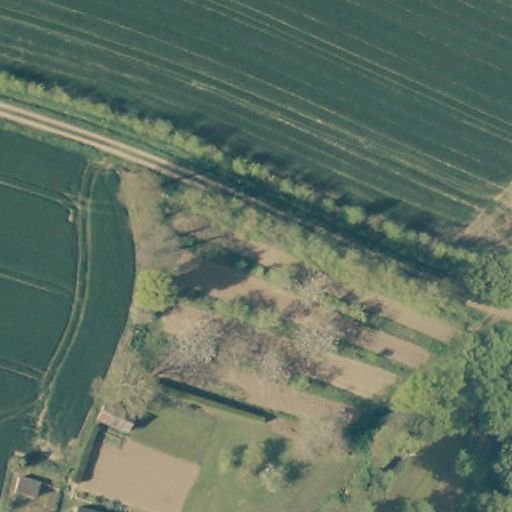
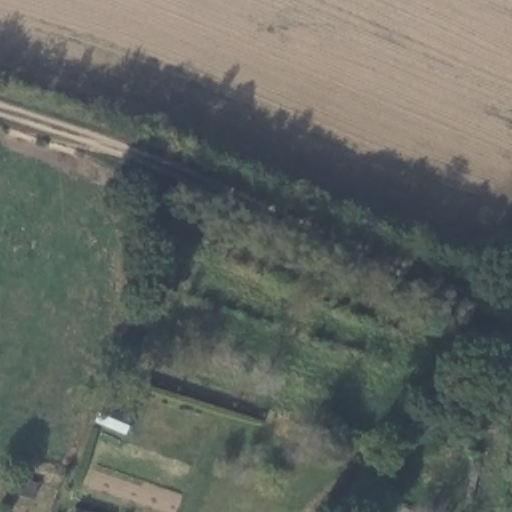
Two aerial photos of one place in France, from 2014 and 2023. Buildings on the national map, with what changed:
unchanged [(485,434),(481,403),(497,399),(497,390),(512,387),(512,430),(485,434)]
unchanged [(101,408),(130,420),(124,434),(95,421),(101,408)]
unchanged [(18,479),(38,486),(33,501),(13,494),(18,479)]
unchanged [(75,509),(84,512),(74,512),(75,509)]

